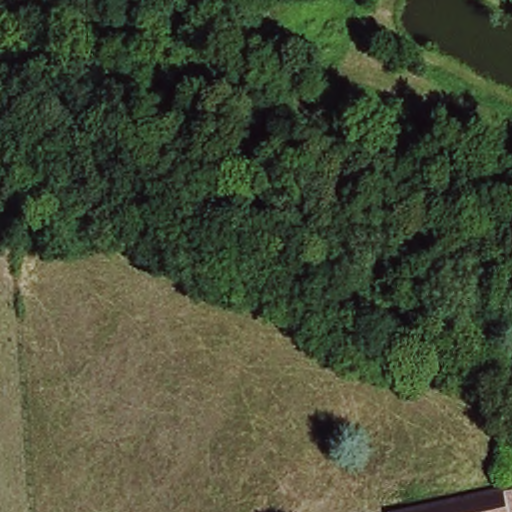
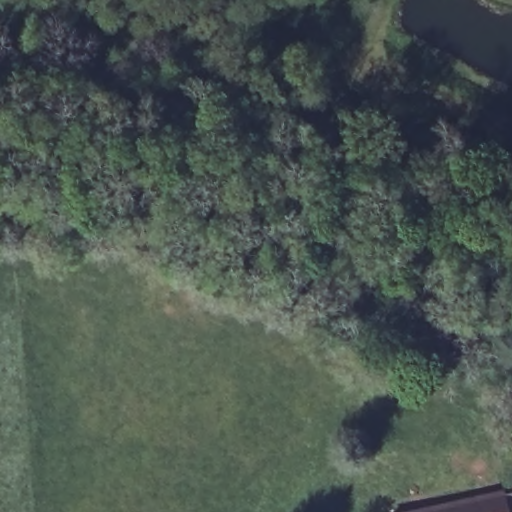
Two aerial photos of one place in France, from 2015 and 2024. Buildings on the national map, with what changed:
unchanged [(507,491),(512,509),(512,512),(417,512),(507,491)]

